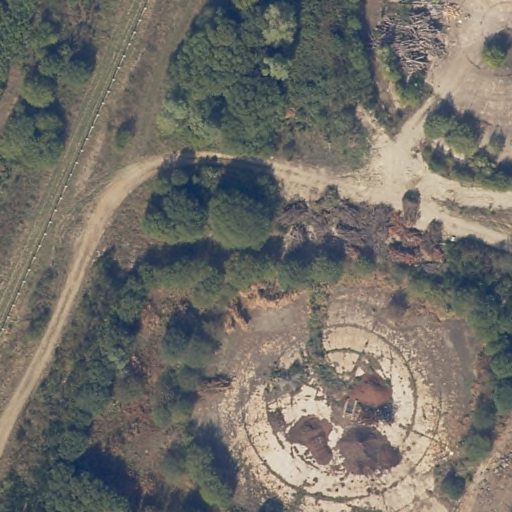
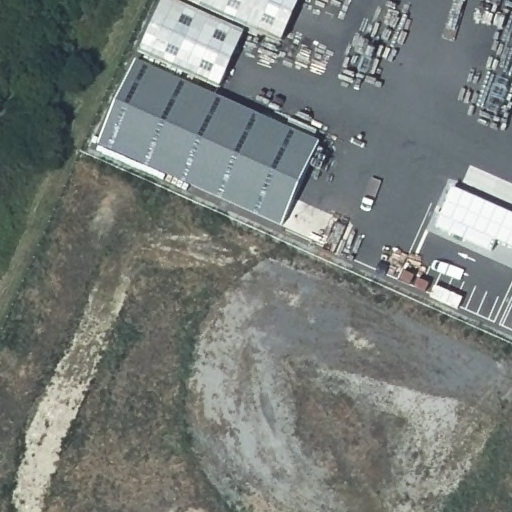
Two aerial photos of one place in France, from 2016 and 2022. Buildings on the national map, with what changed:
new [(140,51),(163,0),(177,0),(245,30),(221,87),(140,51)]
new [(190,0),(301,0),(282,41),(190,0)]
new [(281,226),(99,145),(137,59),(322,140),(281,226)]
new [(488,249),(435,226),(453,186),(512,213),(512,247),(493,238),(488,249)]

